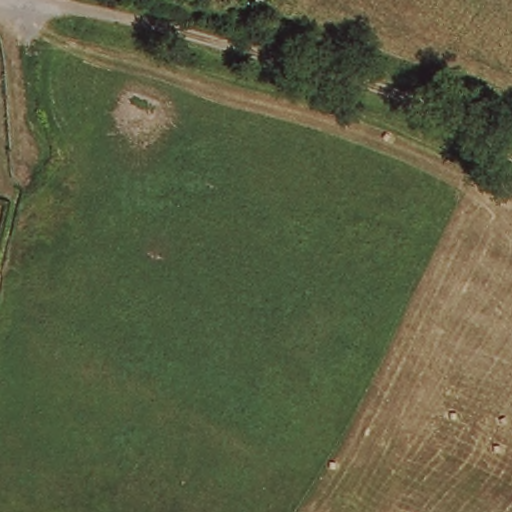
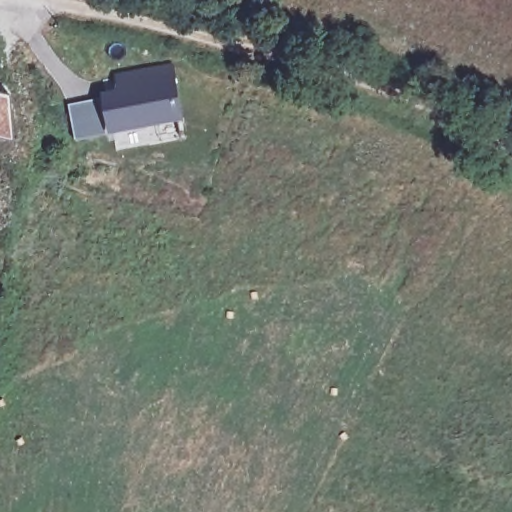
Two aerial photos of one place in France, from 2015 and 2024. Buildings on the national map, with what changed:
new [(112,137),(103,96),(120,92),(117,75),(175,66),(177,81),(186,123),(112,137)]
new [(11,139),(0,137),(0,89),(9,91),(11,139)]

